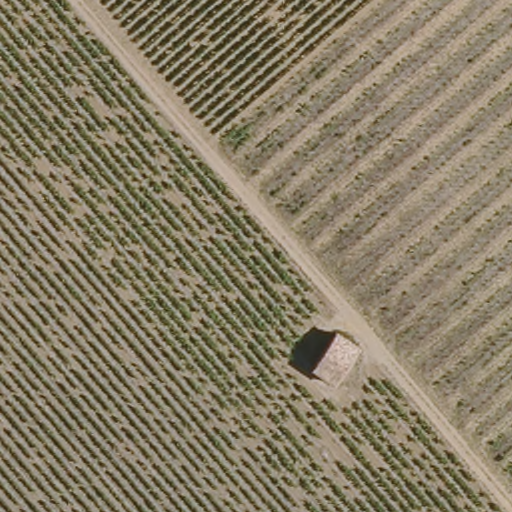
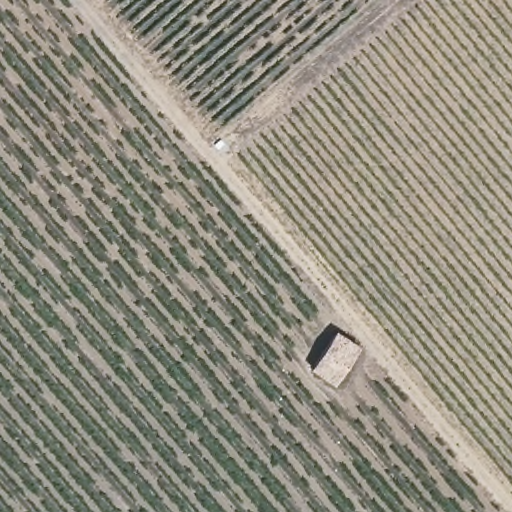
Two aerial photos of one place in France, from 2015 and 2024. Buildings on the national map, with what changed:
unchanged [(330,339),(349,352),(340,368),(330,387),(309,371),(319,356),(330,339)]

